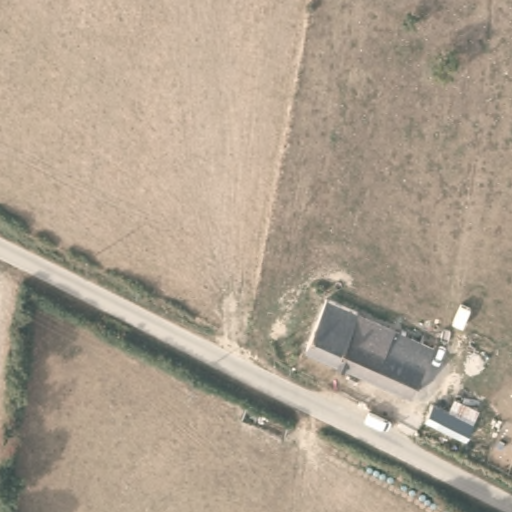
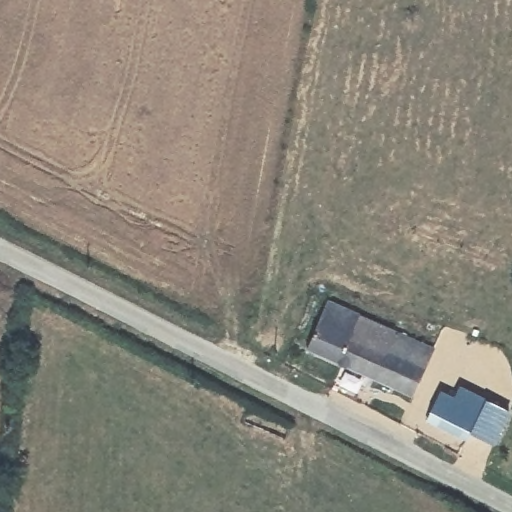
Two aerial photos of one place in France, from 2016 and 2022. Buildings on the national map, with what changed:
unchanged [(308,341),(330,292),(362,306),(360,311),(416,332),(425,325),(435,326),(436,335),(437,338),(414,389),(308,341)]
new [(435,405),(442,388),(455,394),(460,384),(509,410),(493,442),(472,432),(475,423),(470,440),(427,421),(435,405)]
demolished [(430,413),(437,397),(477,415),(472,432),(430,413)]

